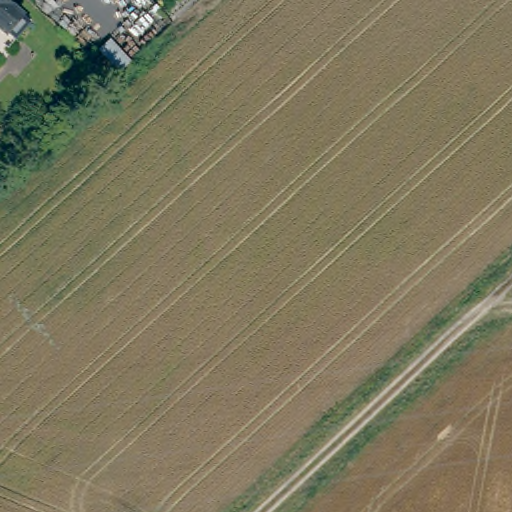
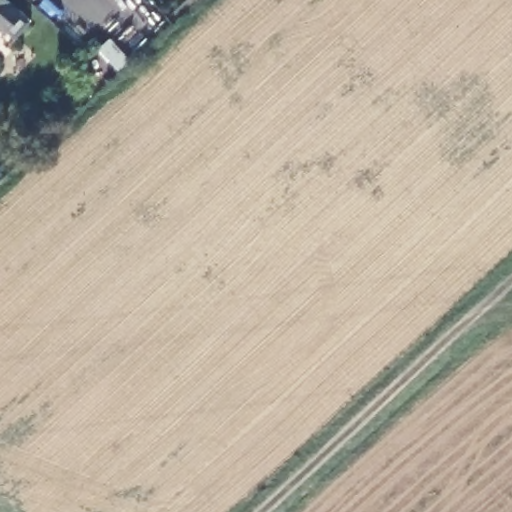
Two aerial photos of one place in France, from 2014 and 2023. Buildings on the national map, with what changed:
unchanged [(6,0),(17,9),(2,29),(0,27),(0,0),(6,0)]

